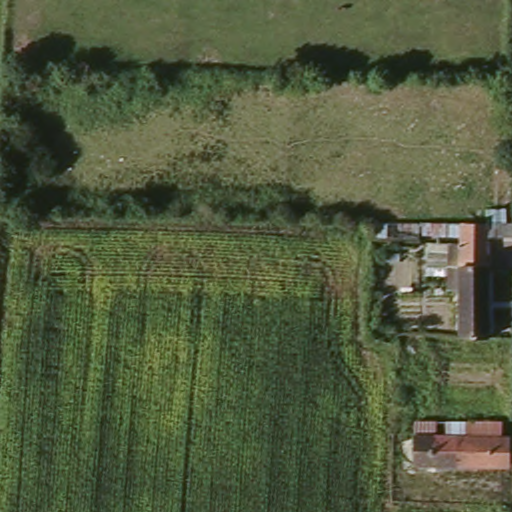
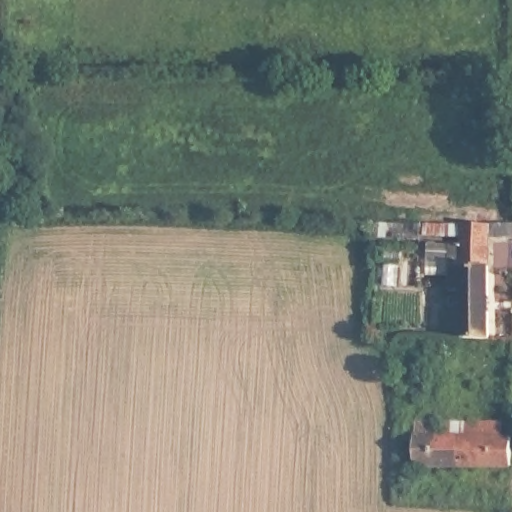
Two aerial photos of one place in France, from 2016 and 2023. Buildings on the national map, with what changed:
unchanged [(512,236),(491,235),(489,264),(482,265),(469,265),(468,273),(459,274),(459,291),(447,290),(448,261),(457,261),(456,236),(423,234),(422,221),(512,221),(512,236)]
unchanged [(459,338),(459,291),(459,274),(468,273),(469,265),(482,265),(483,273),(490,273),(490,338),(459,338)]
unchanged [(502,421),(502,436),(510,437),(509,467),(413,466),(414,419),(502,421)]

